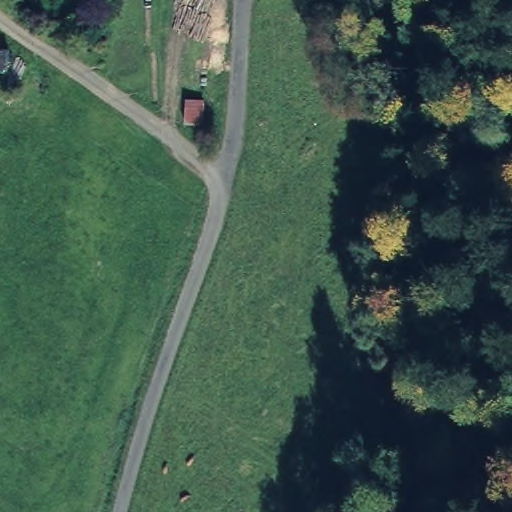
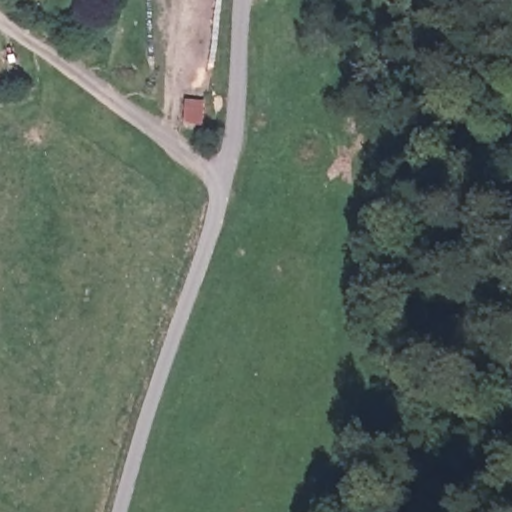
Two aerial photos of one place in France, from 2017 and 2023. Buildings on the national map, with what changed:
unchanged [(203,94),(204,118),(180,119),(179,95),(203,94)]

